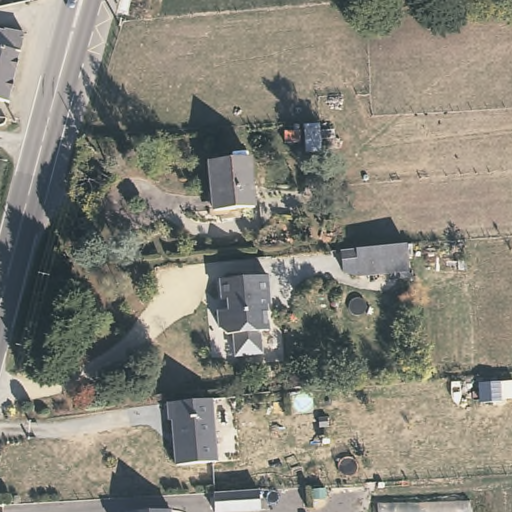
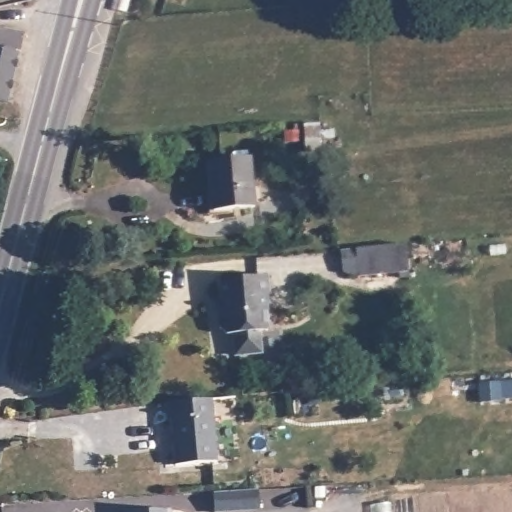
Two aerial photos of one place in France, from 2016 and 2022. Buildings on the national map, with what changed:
unchanged [(0,24),(4,25),(4,22),(21,25),(10,100),(0,98),(0,24)]
unchanged [(254,206),(213,210),(209,161),(250,158),(254,206)]
unchanged [(415,246),(417,272),(367,277),(351,271),(350,251),(415,246)]
unchanged [(267,286),(264,287),(267,332),(259,332),(261,352),(234,354),(233,333),(228,334),(219,325),(218,309),(226,308),(225,297),(220,296),(220,277),(266,274),(267,286)]
unchanged [(189,403),(215,401),(220,463),(179,467),(175,421),(173,422),(171,405),(189,403)]
unchanged [(263,511),(248,512),(218,512),(217,494),(262,491),(263,511)]
unchanged [(174,512),(159,512),(174,511),(174,512)]

